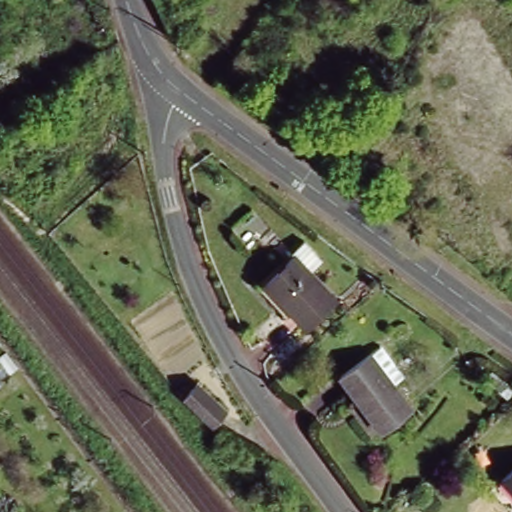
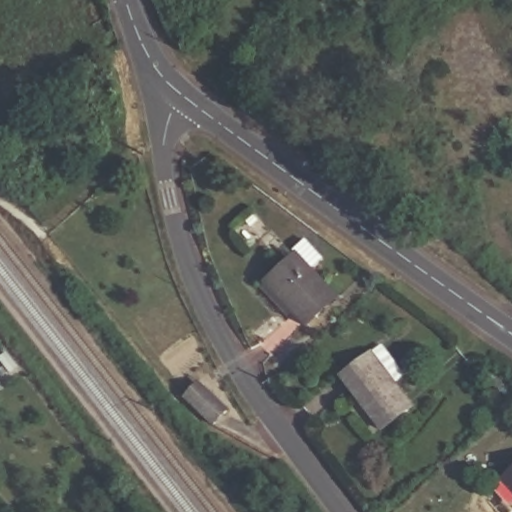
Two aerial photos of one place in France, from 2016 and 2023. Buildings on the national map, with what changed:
unchanged [(267,278),(297,251),(335,295),(305,321),(301,325),(304,327),(295,336),(278,317),(291,305),(267,278)]
unchanged [(377,344),(400,374),(390,381),(409,405),(379,428),(338,373),(377,344)]
unchanged [(187,396),(200,382),(228,410),(215,423),(187,396)]
unchanged [(503,475),(512,468),(512,486),(503,475)]

